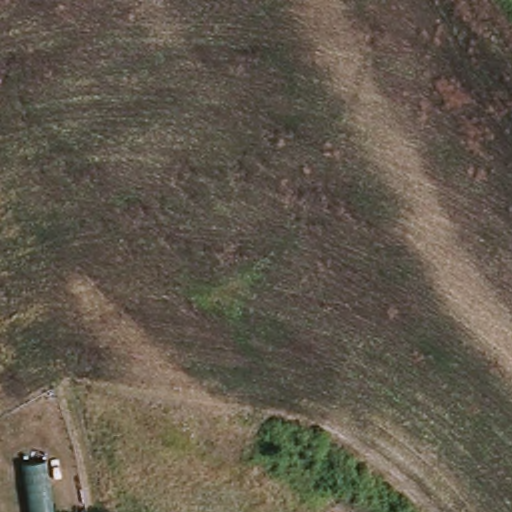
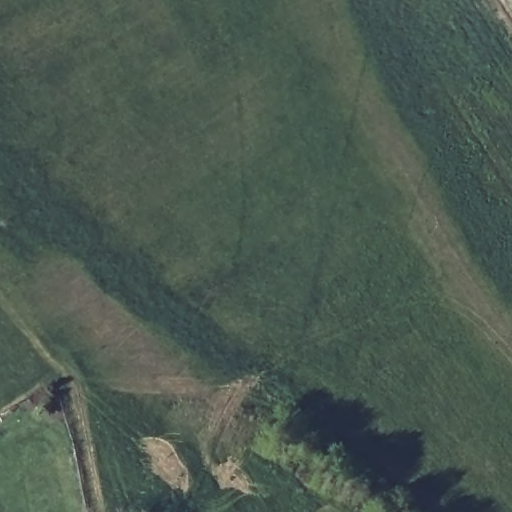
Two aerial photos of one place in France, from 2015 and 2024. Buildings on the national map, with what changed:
demolished [(57,512),(29,512),(20,453),(47,450),(57,512)]

